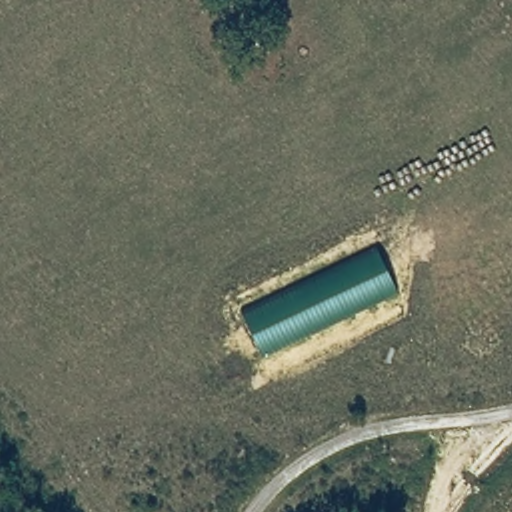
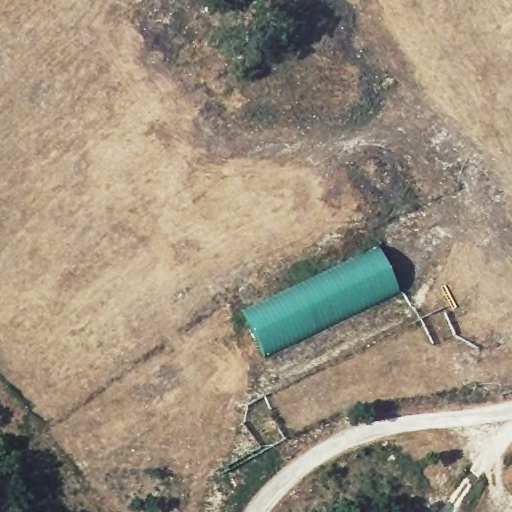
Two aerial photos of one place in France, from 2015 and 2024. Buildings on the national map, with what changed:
unchanged [(265,358),(242,312),(377,249),(399,294),(265,358)]

